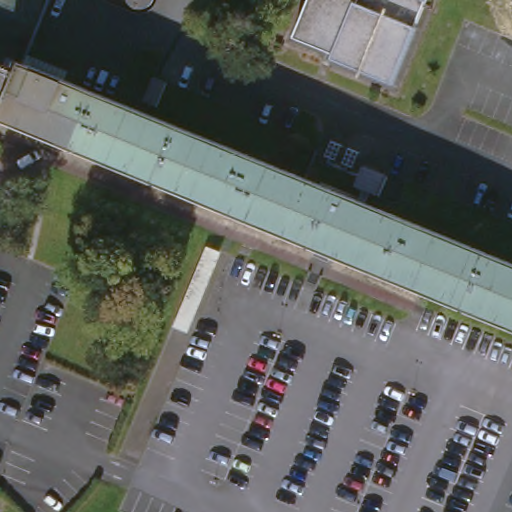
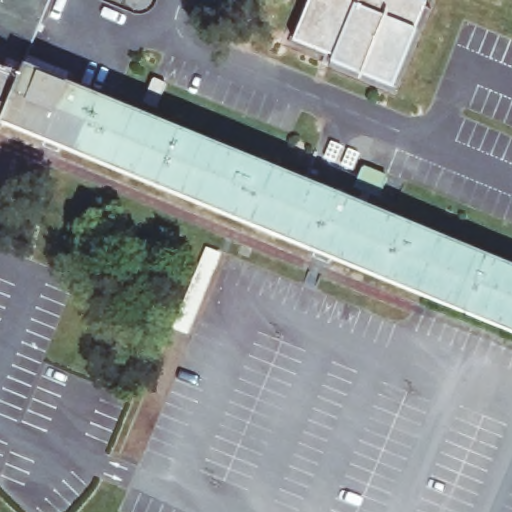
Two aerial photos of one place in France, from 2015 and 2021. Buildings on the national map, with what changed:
unchanged [(28,64),(512,260),(512,331),(3,121),(0,128),(0,0),(53,0),(28,64)]
unchanged [(153,6),(149,9),(146,11),(142,11),(139,11),(132,8),(129,5),(127,1),(127,0),(156,0),(154,4),(153,6)]
unchanged [(395,90),(333,64),(334,58),(293,39),(308,0),(431,0),(433,1),(395,90)]
unchanged [(147,101),(155,80),(167,85),(159,106),(147,101)]
unchanged [(356,185),(364,164),(391,176),(382,196),(356,185)]

